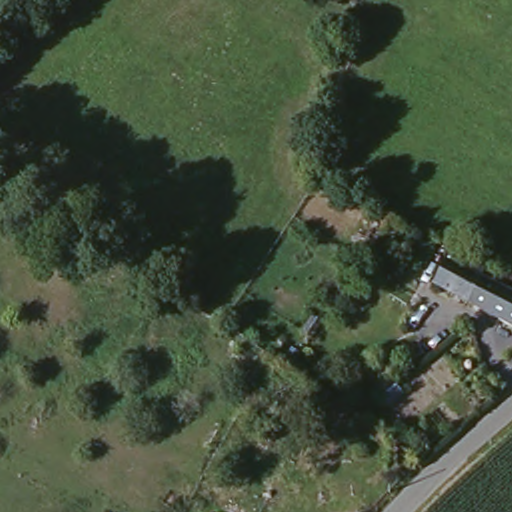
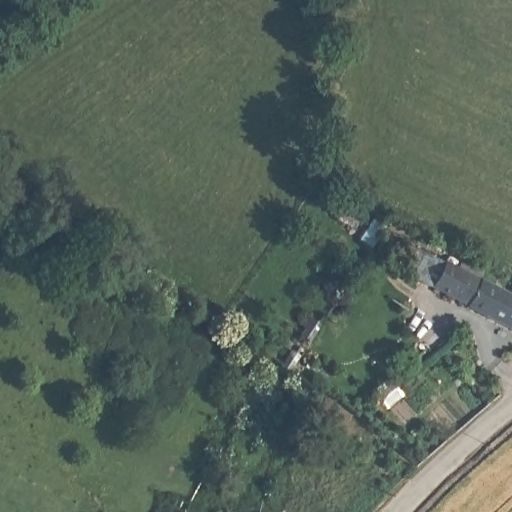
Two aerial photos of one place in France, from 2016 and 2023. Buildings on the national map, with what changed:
unchanged [(497,284),(512,292),(512,324),(433,284),(446,259),(497,284)]

